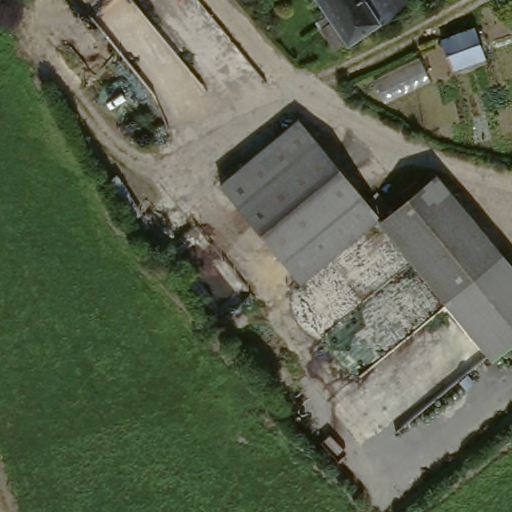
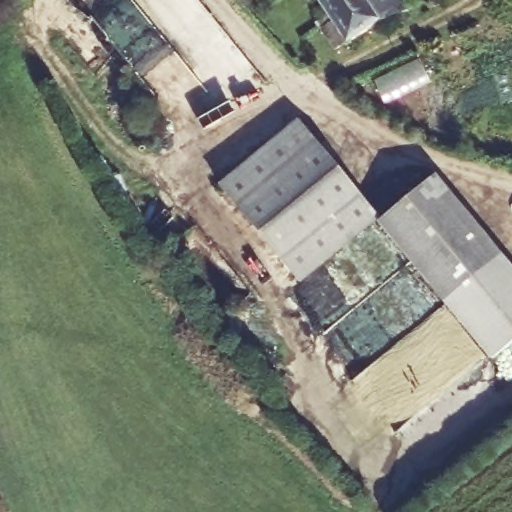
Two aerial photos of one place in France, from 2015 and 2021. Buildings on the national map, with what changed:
unchanged [(342,45),(311,0),(396,0),(402,8),(342,45)]
unchanged [(296,124),(375,224),(299,284),(218,187),(296,124)]
unchanged [(512,276),(512,342),(490,362),(485,355),(442,305),(377,226),(433,184),(512,276)]

